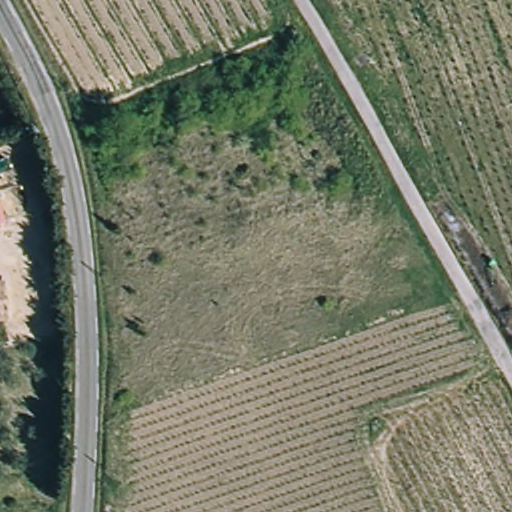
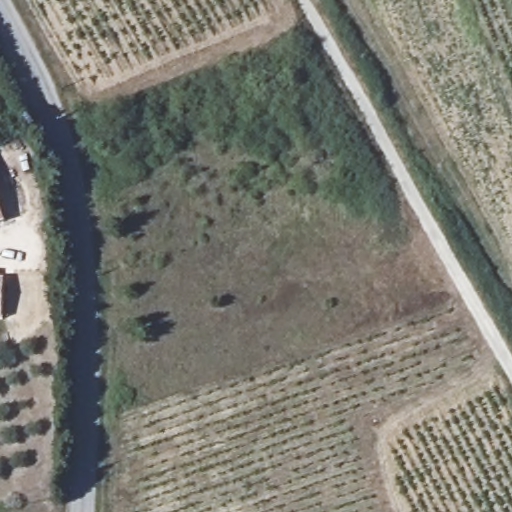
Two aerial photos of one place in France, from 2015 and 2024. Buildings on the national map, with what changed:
unchanged [(0,200),(9,227),(0,230),(0,200)]
unchanged [(0,287),(9,287),(8,318),(8,326),(0,326),(0,287)]

